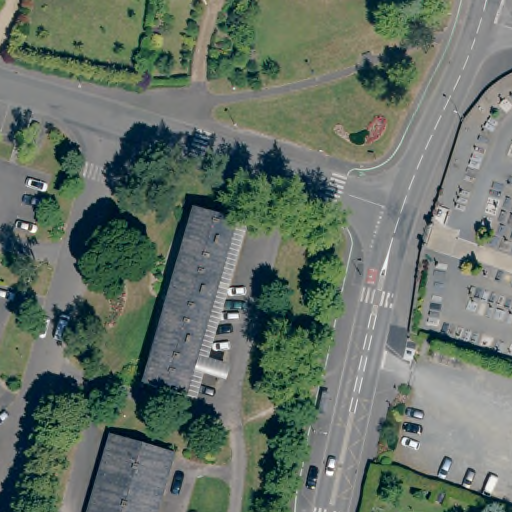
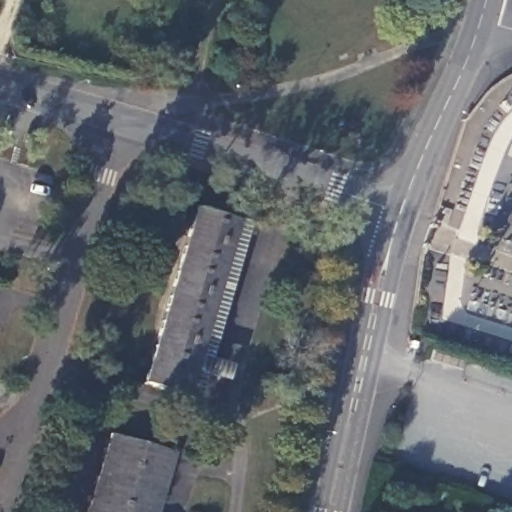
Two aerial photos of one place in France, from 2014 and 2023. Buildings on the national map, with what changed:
unchanged [(222,381),(197,374),(191,399),(140,384),(190,208),(241,223),(202,359),(226,365),(222,381)]
unchanged [(174,457),(158,512),(90,512),(112,439),(174,457)]

